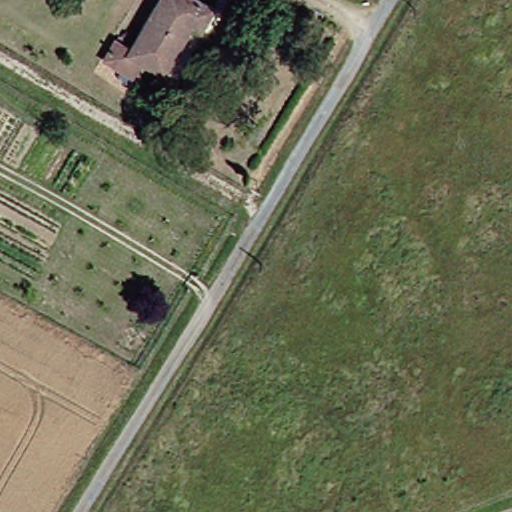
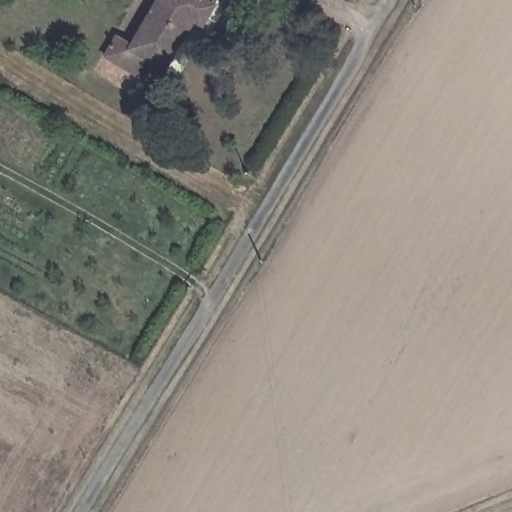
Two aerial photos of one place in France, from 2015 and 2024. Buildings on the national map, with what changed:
unchanged [(106,33),(121,41),(146,0),(201,0),(204,2),(192,22),(183,17),(154,67),(134,55),(125,70),(94,52),(106,33)]

